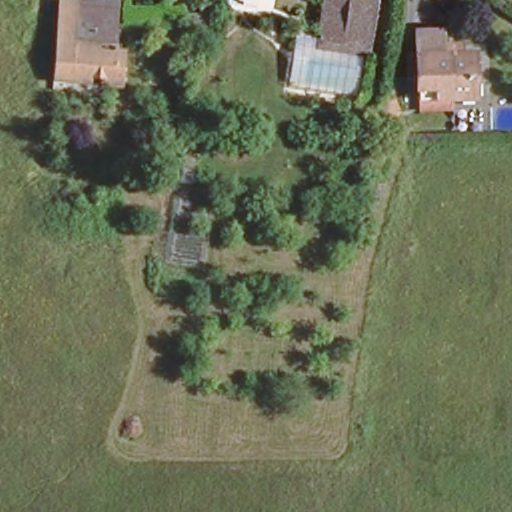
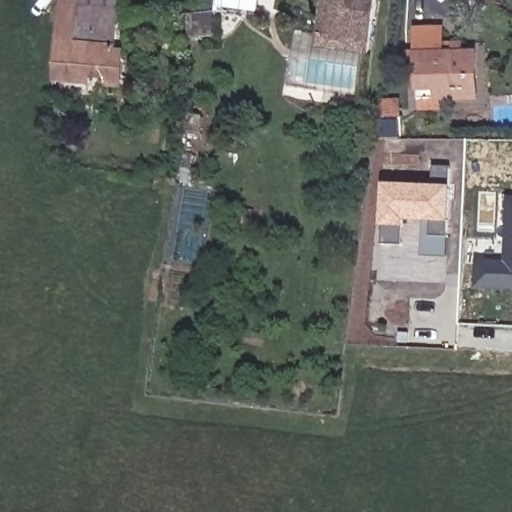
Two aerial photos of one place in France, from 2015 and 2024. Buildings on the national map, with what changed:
unchanged [(55,0),(122,0),(116,42),(125,42),(117,85),(44,81),(55,0)]
unchanged [(315,41),(317,30),(324,0),(366,0),(378,3),(370,41),(367,55),(346,50),(315,41)]
unchanged [(477,101),(455,103),(453,111),(418,111),(415,90),(405,84),(404,50),(413,48),(414,25),(445,25),(445,41),(464,40),(465,51),(473,49),(477,101)]
new [(430,185),(430,164),(446,166),(446,236),(427,235),(427,221),(398,218),(398,245),(378,243),(379,186),(430,185)]
new [(512,289),(471,288),(471,260),(502,260),(503,199),(512,199),(512,289)]

